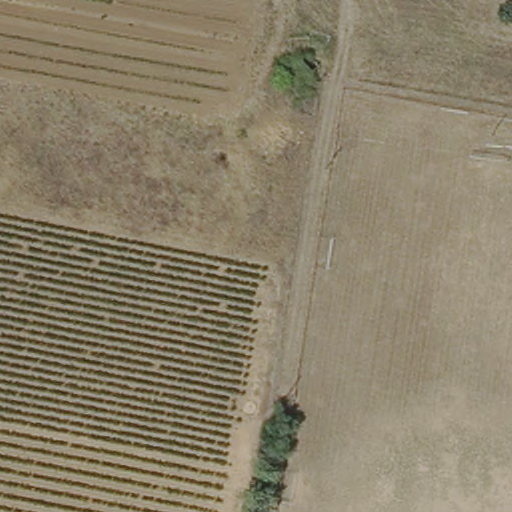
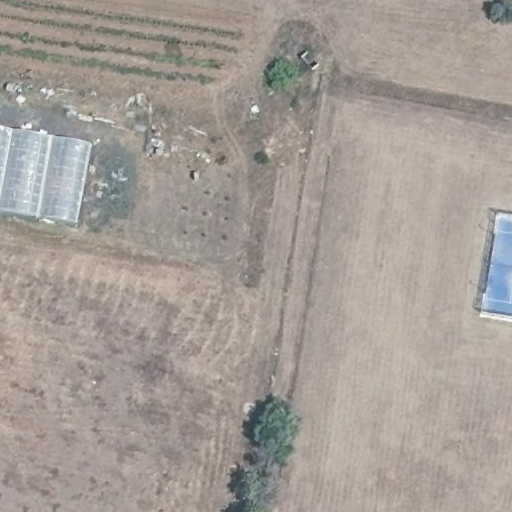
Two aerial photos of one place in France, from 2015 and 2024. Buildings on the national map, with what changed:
new [(76,224),(0,211),(0,127),(91,143),(76,224)]

